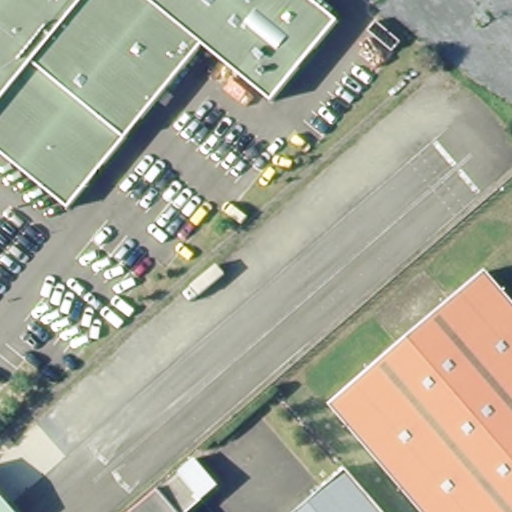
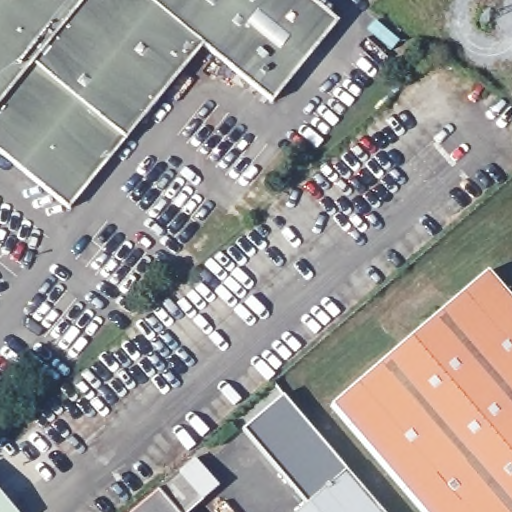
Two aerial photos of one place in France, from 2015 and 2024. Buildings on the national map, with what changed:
unchanged [(272,104),(204,46),(68,209),(0,152),(0,0),(310,0),(338,24),(272,104)]
unchanged [(328,404),(487,269),(512,300),(512,512),(419,512),(328,404)]
new [(309,504),(243,430),(283,397),(347,471),(309,504)]
unchanged [(190,468),(215,497),(197,512),(185,512),(165,488),(190,468)]
unchanged [(386,512),(300,512),(348,469),(386,512)]
unchanged [(21,512),(0,512),(0,488),(21,512)]
unchanged [(185,512),(134,512),(155,495),(165,488),(185,512)]

